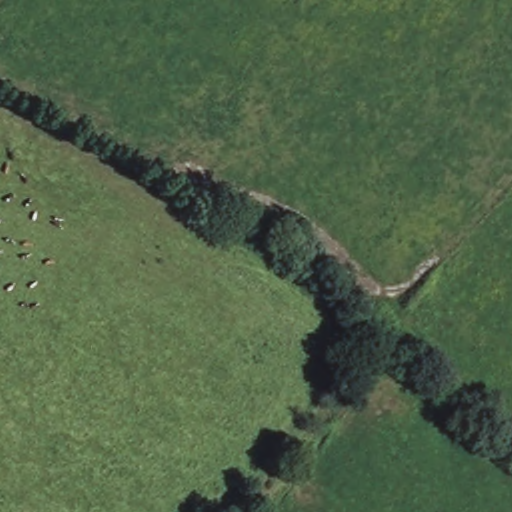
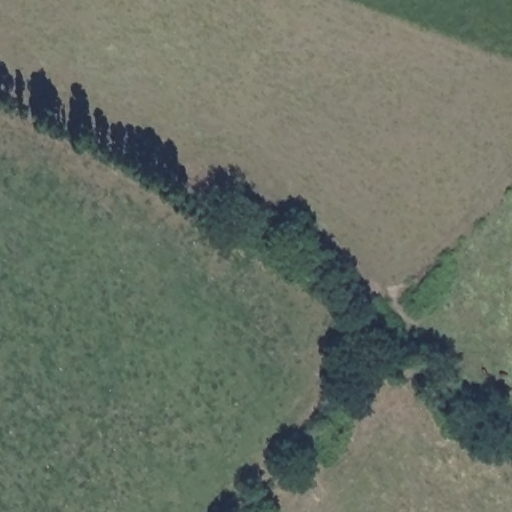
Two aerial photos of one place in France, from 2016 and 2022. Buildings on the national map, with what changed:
[]

